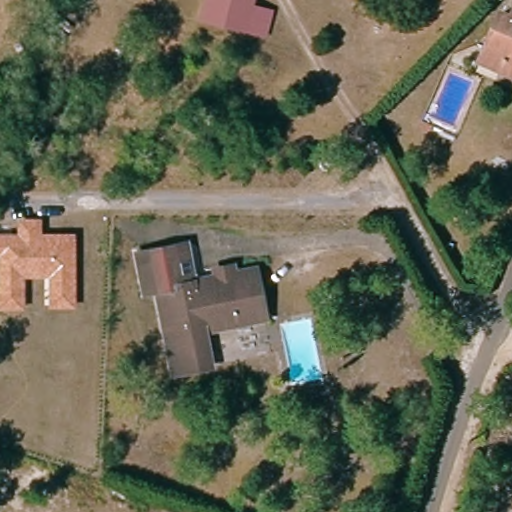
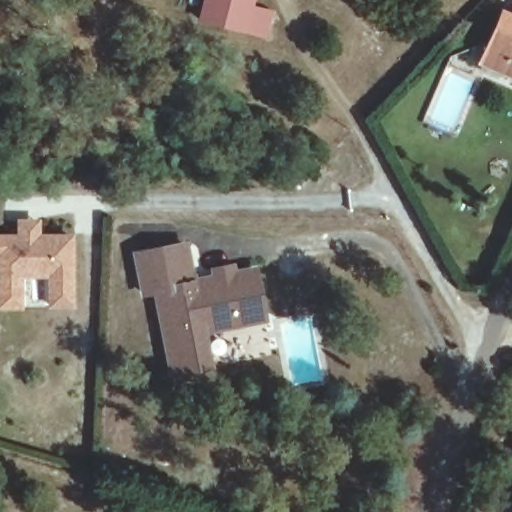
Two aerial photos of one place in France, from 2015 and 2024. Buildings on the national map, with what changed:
unchanged [(198,22),(204,0),(252,0),(246,32),(198,22)]
unchanged [(512,60),(487,50),(498,12),(512,17),(512,60)]
unchanged [(512,87),(479,76),(487,50),(512,60),(512,87)]
unchanged [(45,308),(46,278),(23,277),(22,310),(0,310),(0,233),(15,232),(15,218),(40,218),(41,233),(74,233),(74,307),(45,308)]
unchanged [(157,296),(148,298),(137,246),(180,239),(188,289),(157,296)]
unchanged [(209,264),(235,258),(240,280),(259,277),(269,324),(203,336),(209,371),(175,378),(157,296),(188,289),(213,285),(209,264)]

